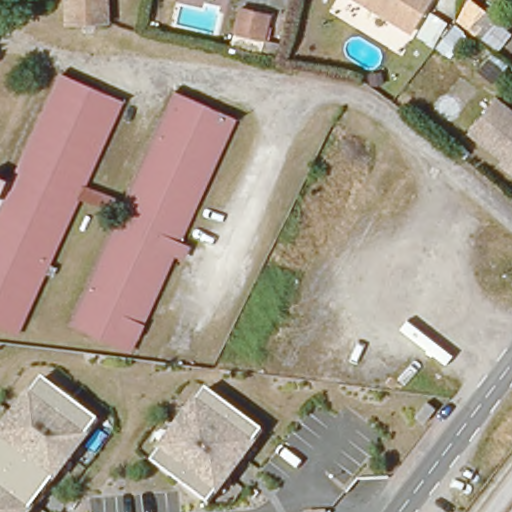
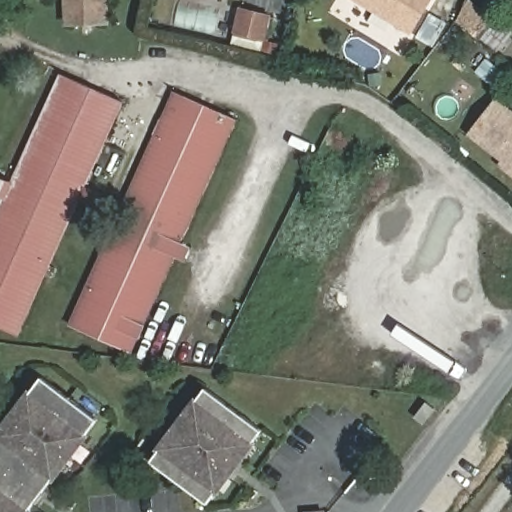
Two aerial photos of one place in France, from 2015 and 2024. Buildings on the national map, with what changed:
unchanged [(67,24),(67,0),(107,0),(107,21),(67,24)]
unchanged [(357,0),(430,0),(410,32),(357,0)]
unchanged [(468,1),(511,34),(497,51),(482,38),(481,39),(458,21),(468,1)]
unchanged [(265,39),(236,32),(241,10),(270,16),(265,39)]
unchanged [(488,59),(503,71),(492,85),(477,72),(488,59)]
unchanged [(13,189),(18,178),(62,79),(122,106),(84,190),(16,341),(0,333),(0,219),(14,189),(13,189)]
unchanged [(71,331),(127,207),(176,97),(235,124),(181,245),(144,327),(130,358),(71,331)]
unchanged [(495,101),(512,114),(512,177),(498,166),(503,159),(470,132),(495,101)]
unchanged [(0,219),(0,182),(13,189),(14,189),(0,219)]
unchanged [(97,421),(27,512),(0,512),(0,432),(42,378),(97,421)]
unchanged [(206,389),(261,431),(207,504),(151,462),(206,389)]
unchanged [(426,403),(435,409),(422,424),(415,418),(426,403)]
unchanged [(326,510),(326,512),(306,512),(306,511),(326,510)]

